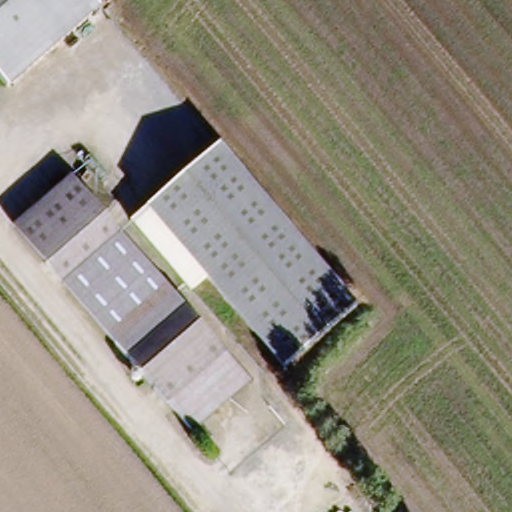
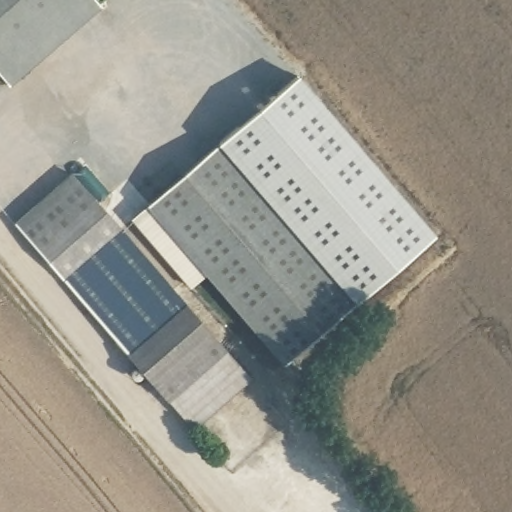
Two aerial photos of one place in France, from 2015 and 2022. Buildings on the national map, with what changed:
unchanged [(0,80),(0,0),(93,0),(100,9),(7,88),(0,80)]
new [(297,74),(436,236),(357,304),(237,163),(220,143),(297,74)]
unchanged [(149,202),(220,143),(357,304),(286,363),(149,202)]
unchanged [(242,384),(190,429),(16,222),(67,179),(72,174),(247,381),(242,384)]
new [(130,219),(149,202),(207,270),(190,289),(130,219)]

